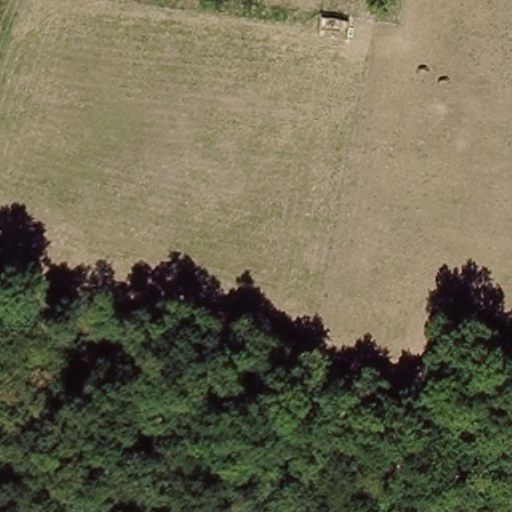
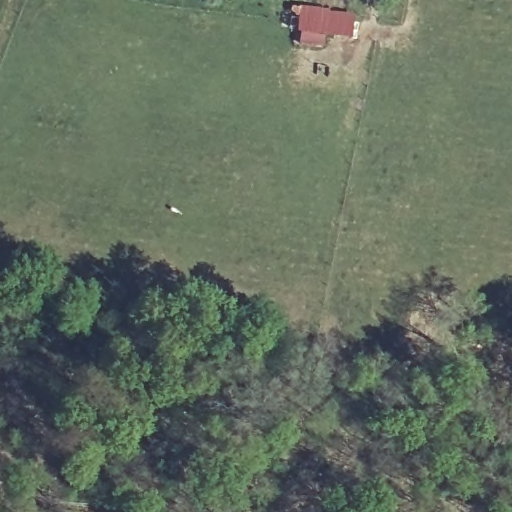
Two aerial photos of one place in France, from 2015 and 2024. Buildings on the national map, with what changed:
new [(303,6),(355,14),(352,38),(326,35),(325,44),(302,43),(304,32),(299,31),(303,6)]

